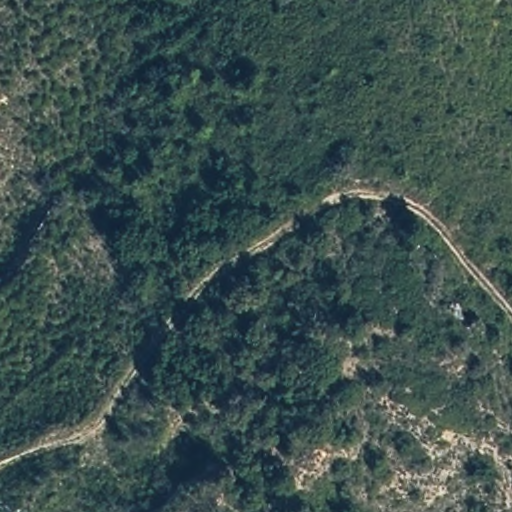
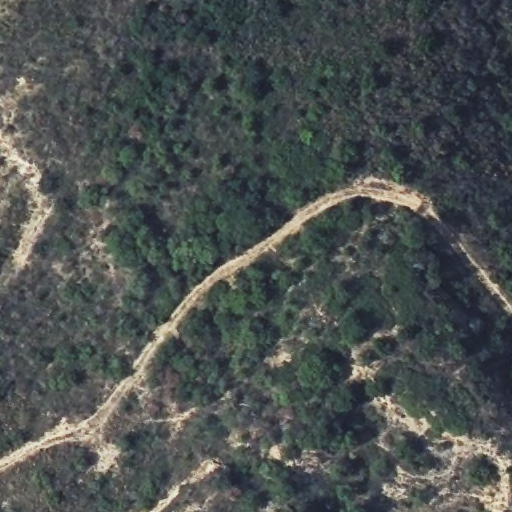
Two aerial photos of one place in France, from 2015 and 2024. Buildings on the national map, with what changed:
[]

